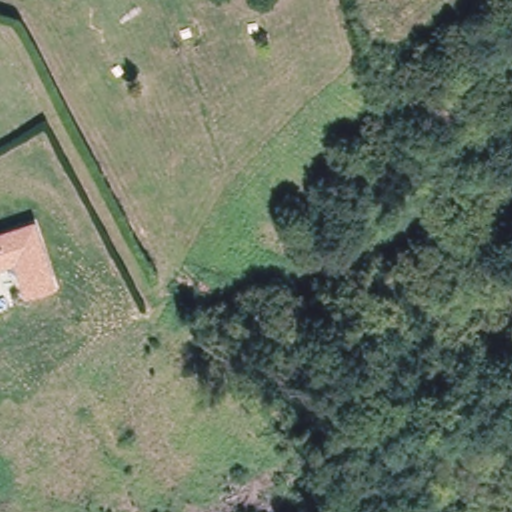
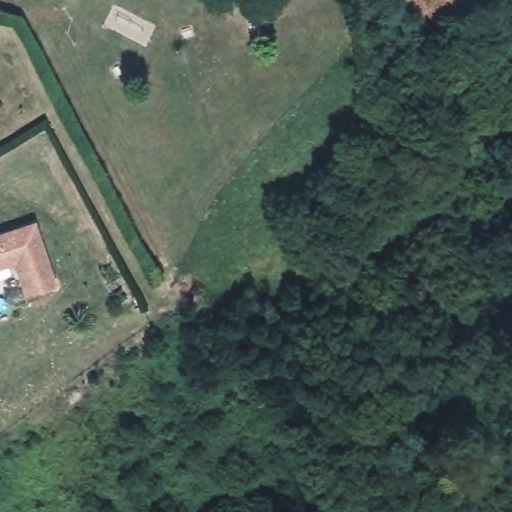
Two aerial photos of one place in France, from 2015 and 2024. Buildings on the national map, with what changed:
unchanged [(29,294),(17,260),(0,266),(0,239),(34,228),(53,285),(29,294)]

